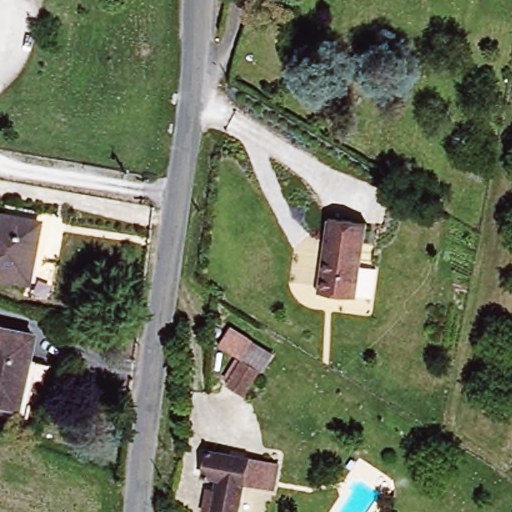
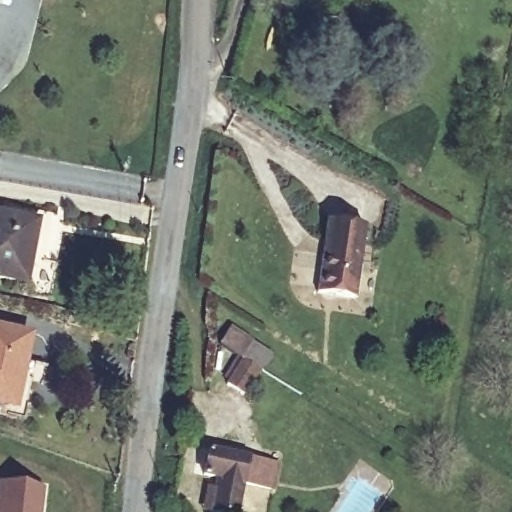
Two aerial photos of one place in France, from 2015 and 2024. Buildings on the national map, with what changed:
unchanged [(0,278),(0,214),(36,221),(24,282),(0,278)]
unchanged [(367,311),(327,307),(336,233),(375,237),(367,311)]
unchanged [(13,402),(0,399),(0,323),(29,330),(13,402)]
unchanged [(267,365),(250,392),(232,380),(249,353),(267,365)]
unchanged [(268,461),(275,462),(269,490),(237,483),(230,512),(213,512),(201,509),(207,476),(200,475),(207,448),(243,456),(268,461)]
new [(42,487),(40,512),(0,512),(0,481),(42,487)]

